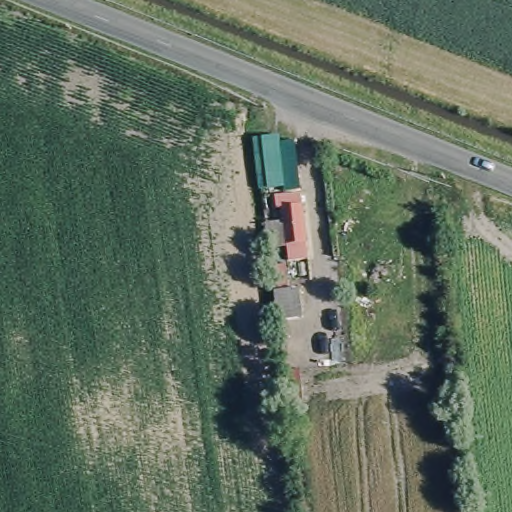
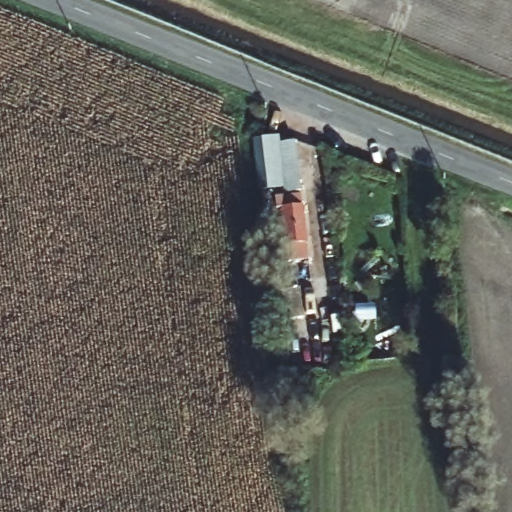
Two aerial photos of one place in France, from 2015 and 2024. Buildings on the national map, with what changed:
unchanged [(291,189),(275,190),(273,139),(290,139),(291,189)]
unchanged [(277,250),(276,196),(291,195),(294,249),(277,250)]

